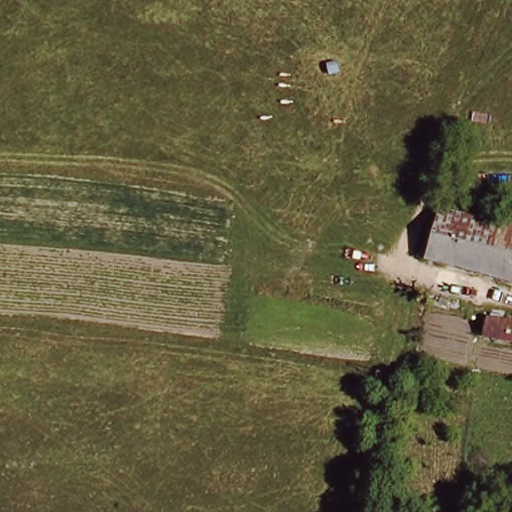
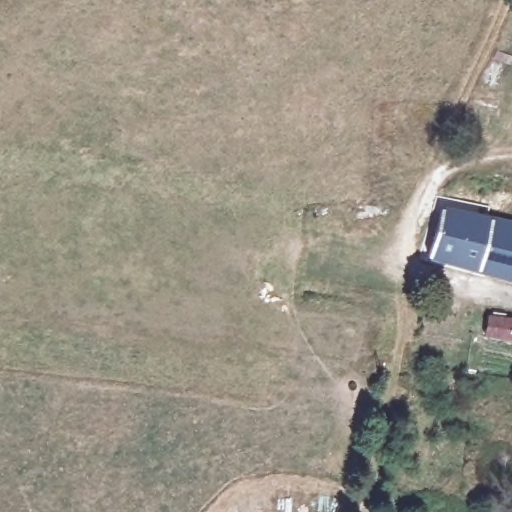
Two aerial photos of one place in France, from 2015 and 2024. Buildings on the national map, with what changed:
unchanged [(512,230),(512,279),(428,264),(437,217),(512,230)]
unchanged [(505,313),(512,314),(512,337),(500,334),(505,313)]

